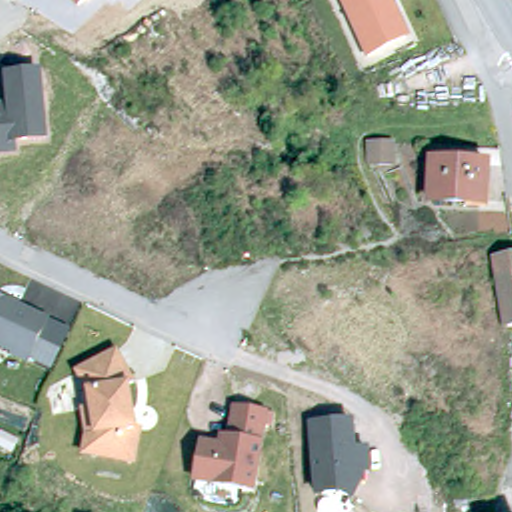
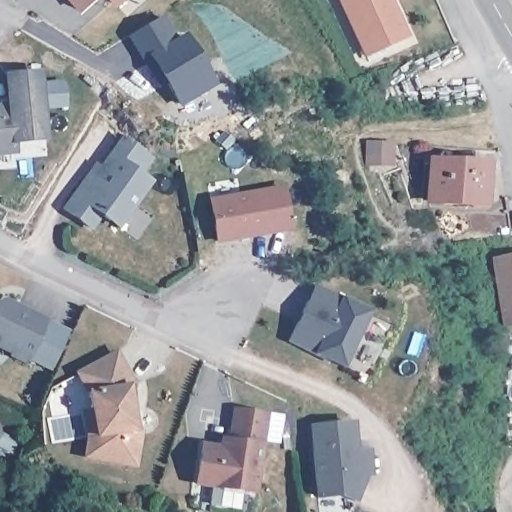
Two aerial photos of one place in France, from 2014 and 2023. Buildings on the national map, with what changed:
unchanged [(67,0),(89,0),(77,11),(67,0)]
unchanged [(107,0),(119,0),(112,6),(107,0)]
unchanged [(367,55),(342,0),(396,0),(412,36),(367,55)]
new [(156,78),(130,35),(160,17),(175,43),(184,38),(212,84),(180,104),(166,81),(161,85),(156,78)]
unchanged [(4,73),(42,69),(47,140),(16,143),(17,154),(0,155),(0,103),(6,103),(4,73)]
new [(120,229),(102,217),(93,231),(62,209),(121,134),(154,159),(142,174),(154,182),(120,229)]
unchanged [(392,163),(370,163),(371,143),(394,144),(392,163)]
unchanged [(485,204),(431,200),(434,160),(488,164),(485,204)]
new [(284,187),(291,232),(216,244),(209,198),(284,187)]
unchanged [(496,259),(512,257),(512,326),(507,327),(496,259)]
new [(342,298),(371,313),(345,368),(315,354),(289,342),(314,284),(342,298)]
unchanged [(31,368),(14,359),(15,357),(0,350),(0,301),(51,324),(31,368)]
unchanged [(92,396),(81,377),(119,357),(136,387),(132,389),(140,433),(145,434),(139,469),(97,462),(89,461),(92,441),(87,415),(95,413),(92,396)]
unchanged [(269,417),(257,494),(200,486),(206,448),(225,451),(227,442),(234,443),(239,412),(269,417)]
unchanged [(353,504),(344,498),(315,499),(308,425),(354,421),(357,449),(370,448),(372,477),(366,478),(353,504)]

